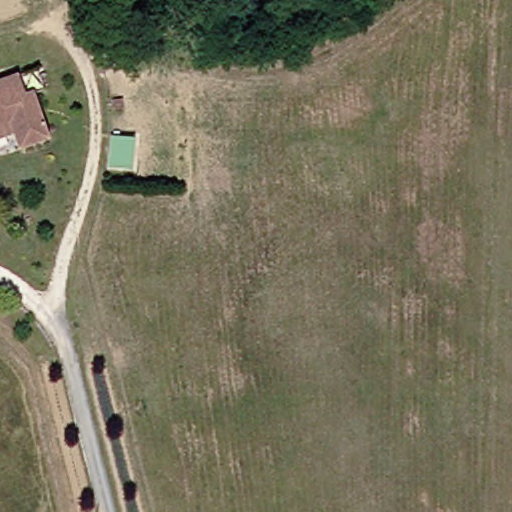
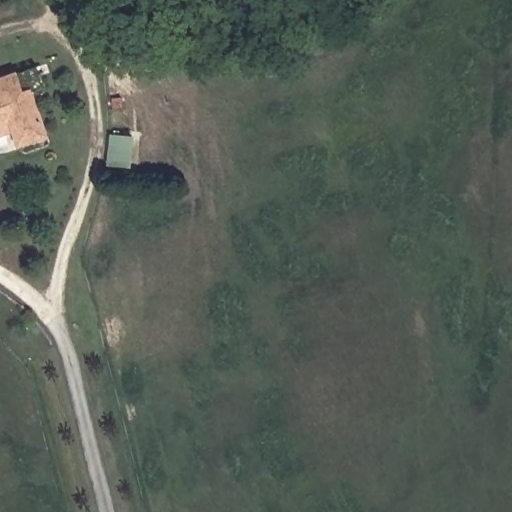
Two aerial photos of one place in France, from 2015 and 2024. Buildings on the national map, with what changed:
unchanged [(33,166),(26,148),(0,158),(0,96),(30,85),(38,110),(46,104),(64,152),(33,166)]

